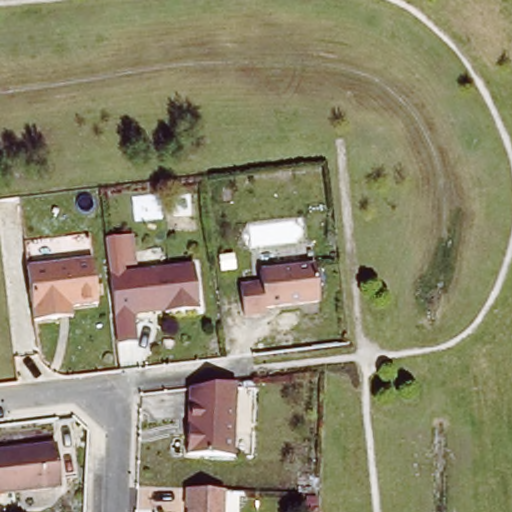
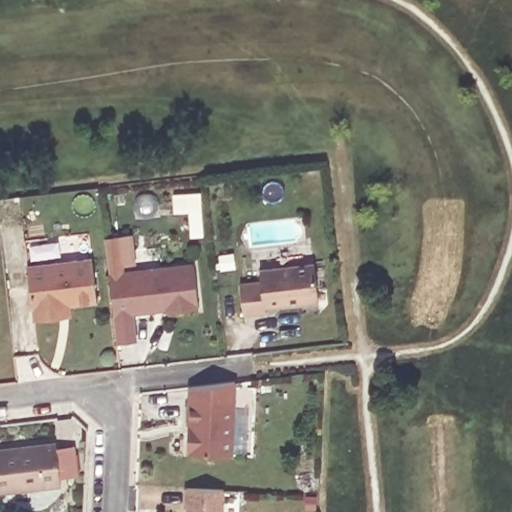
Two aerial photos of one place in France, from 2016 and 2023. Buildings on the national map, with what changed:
unchanged [(52,323),(28,326),(25,293),(21,272),(26,271),(86,264),(92,308),(65,312),(67,321),(52,323)]
unchanged [(255,284),(253,272),(308,265),(313,302),(260,309),(260,314),(238,317),(234,286),(255,284)]
unchanged [(193,268),(198,313),(165,317),(165,314),(114,319),(109,277),(193,268)]
unchanged [(240,379),(237,451),(191,449),(193,384),(240,379)]
unchanged [(60,439),(65,483),(0,489),(0,446),(60,439)]
unchanged [(222,486),(221,512),(187,512),(187,503),(183,503),(185,484),(222,486)]

